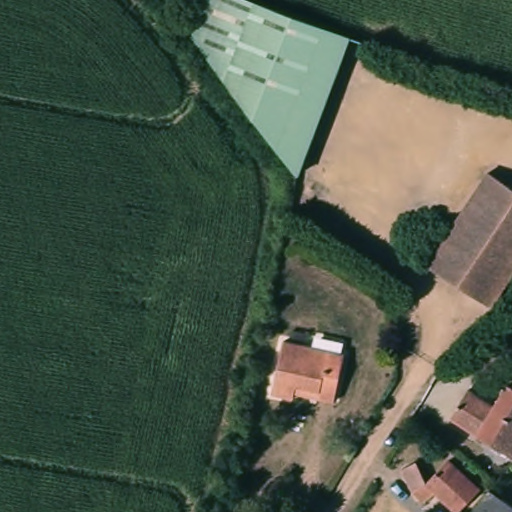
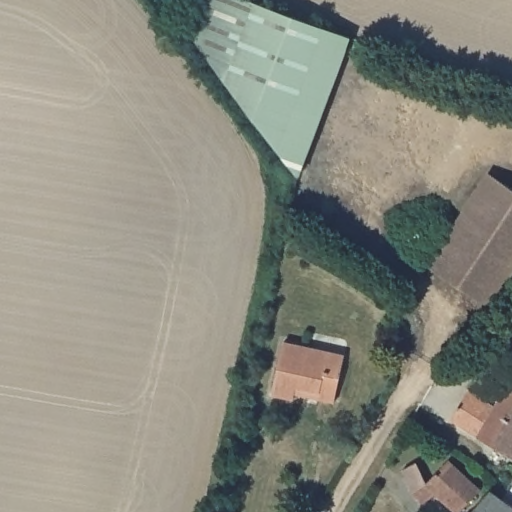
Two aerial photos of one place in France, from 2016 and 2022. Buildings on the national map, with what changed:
unchanged [(197,0),(262,0),(356,36),(302,177),(187,26),(197,0)]
unchanged [(512,185),(512,277),(492,307),(438,268),(431,264),(493,172),(512,185)]
unchanged [(350,352),(337,402),(319,398),(321,394),(297,390),(296,400),(273,395),(286,338),(350,352)]
unchanged [(497,404),(507,383),(512,385),(512,452),(453,417),(471,388),(497,404)]
unchanged [(419,456),(429,468),(452,452),(483,484),(459,508),(439,487),(424,497),(412,485),(402,464),(419,456)]
unchanged [(512,497),(512,512),(471,512),(495,483),(506,493),(512,497)]

